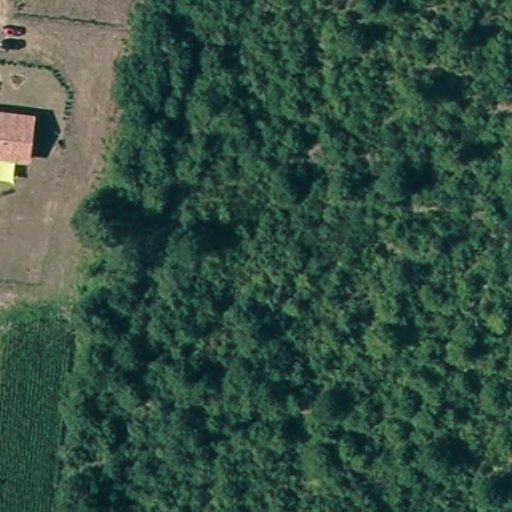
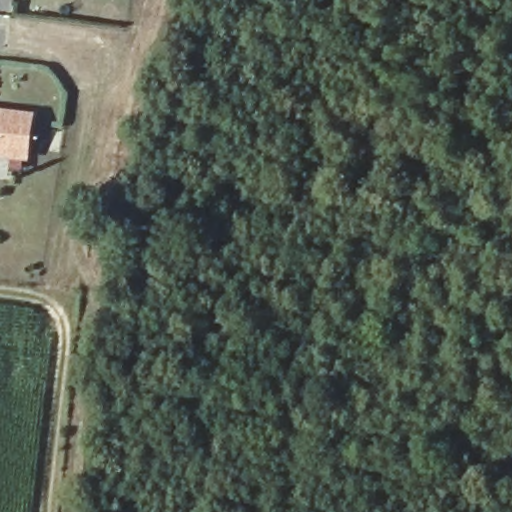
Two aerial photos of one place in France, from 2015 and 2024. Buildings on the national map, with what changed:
unchanged [(35,114),(28,161),(0,158),(0,109),(35,114)]

